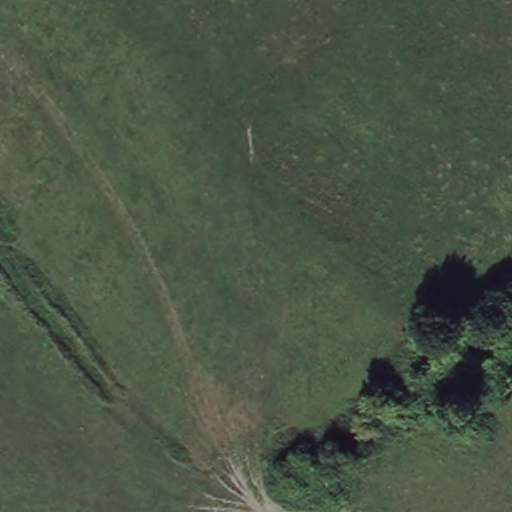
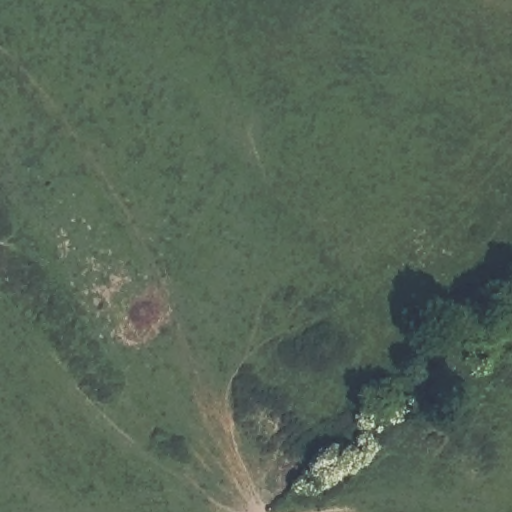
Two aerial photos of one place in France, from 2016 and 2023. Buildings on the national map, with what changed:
unchanged [(347,478),(338,499),(293,482),(302,460),(347,478)]

